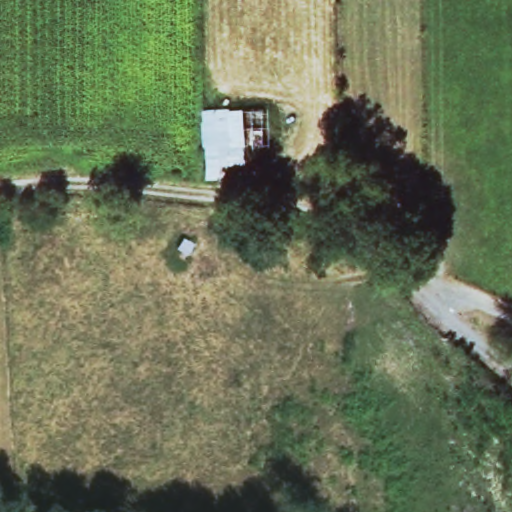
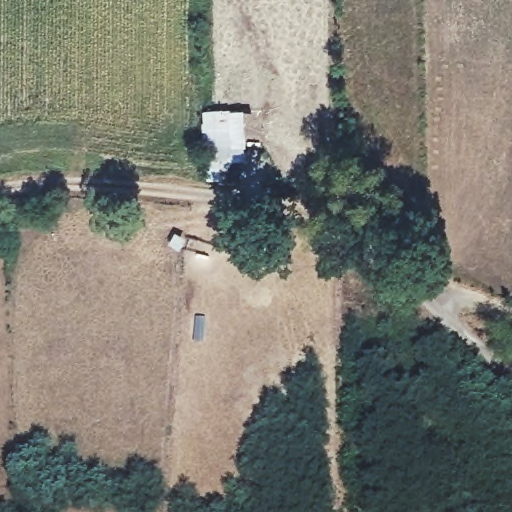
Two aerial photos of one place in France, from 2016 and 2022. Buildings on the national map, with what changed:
unchanged [(203,107),(232,109),(235,154),(218,156),(206,158),(203,107)]

